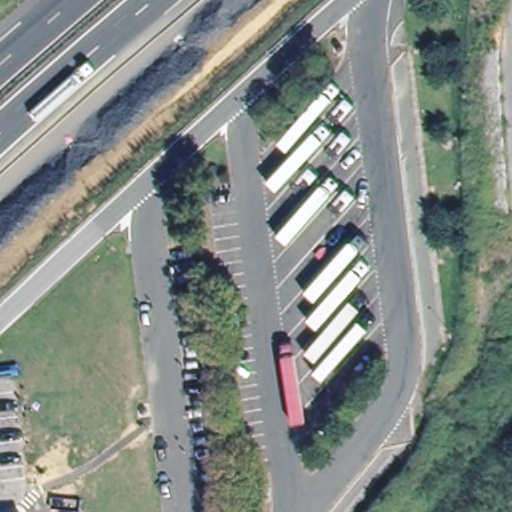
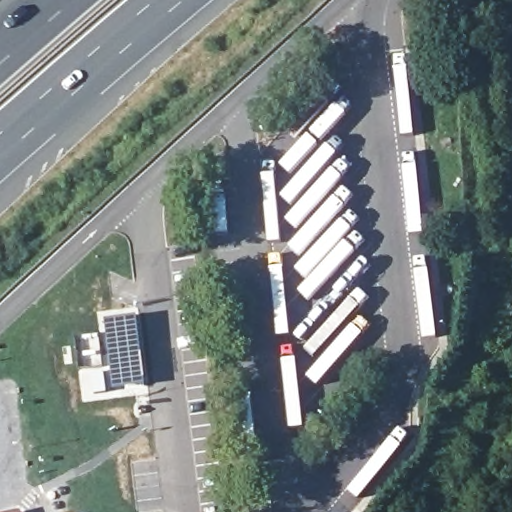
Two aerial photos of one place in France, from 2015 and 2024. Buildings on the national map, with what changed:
new [(141,312),(149,388),(82,400),(81,367),(79,337),(101,335),(99,313),(141,312)]

